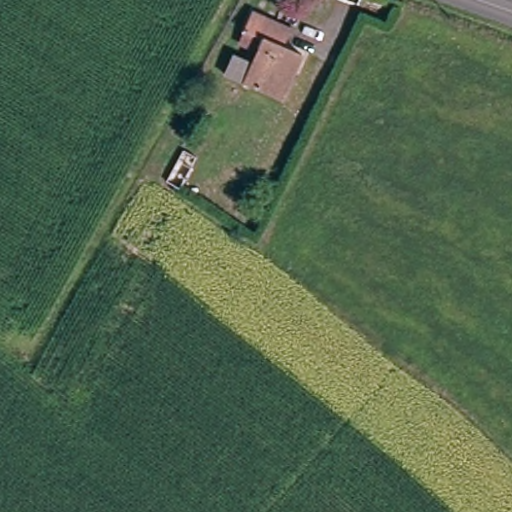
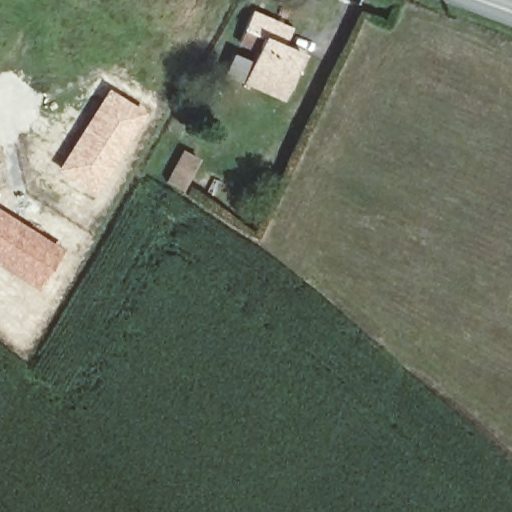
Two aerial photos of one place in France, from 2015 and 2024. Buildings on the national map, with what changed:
unchanged [(291,24),(284,44),(301,54),(282,96),(217,71),(225,51),(248,60),(258,33),(240,27),(249,6),(291,24)]
new [(106,87),(145,111),(95,193),(55,169),(106,87)]
unchanged [(154,176),(168,150),(176,155),(162,182),(154,176)]
new [(36,289),(0,267),(0,210),(62,248),(36,289)]

